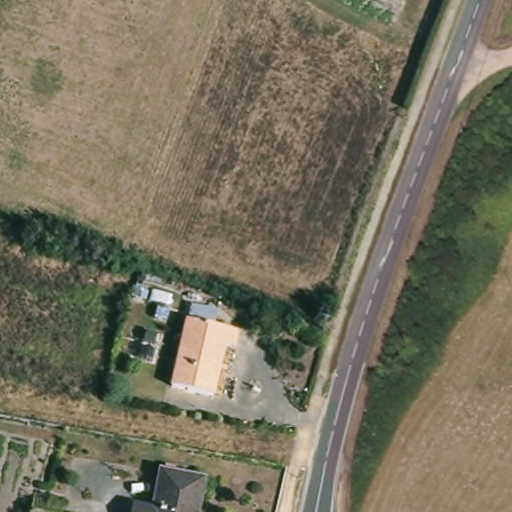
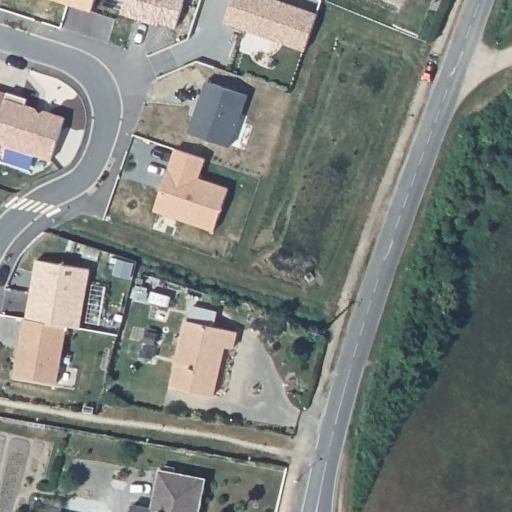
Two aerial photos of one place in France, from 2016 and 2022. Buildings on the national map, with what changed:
new [(95,0),(92,10),(58,0),(95,0)]
new [(184,0),(176,26),(160,21),(159,25),(122,12),(126,0),(184,0)]
new [(277,0),(320,15),(307,52),(230,25),(226,24),(232,6),(235,0),(277,0)]
new [(232,147),(190,132),(206,82),(249,95),(232,147)]
new [(27,105),(38,108),(46,111),(66,117),(52,160),(0,143),(0,119),(9,92),(29,99),(27,105)]
new [(154,212),(175,148),(207,158),(201,177),(230,187),(215,232),(154,212)]
new [(37,260),(91,269),(81,327),(68,325),(27,317),(37,260)]
unchanged [(216,398),(175,389),(193,307),(221,314),(217,330),(240,334),(235,351),(227,348),(216,398)]
new [(26,317),(27,317),(68,325),(58,383),(15,375),(26,317)]
unchanged [(136,507),(155,511),(162,473),(208,481),(203,512),(136,512),(136,507)]

